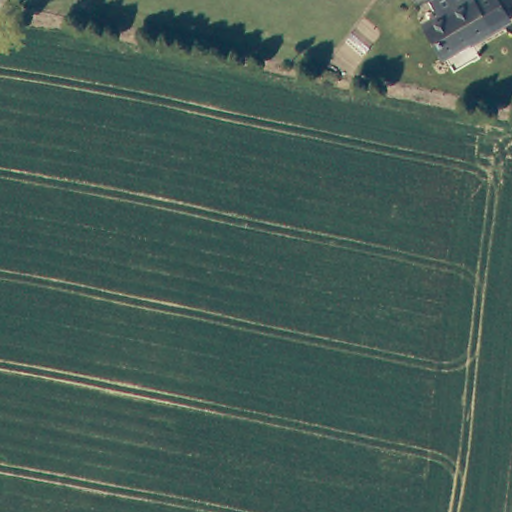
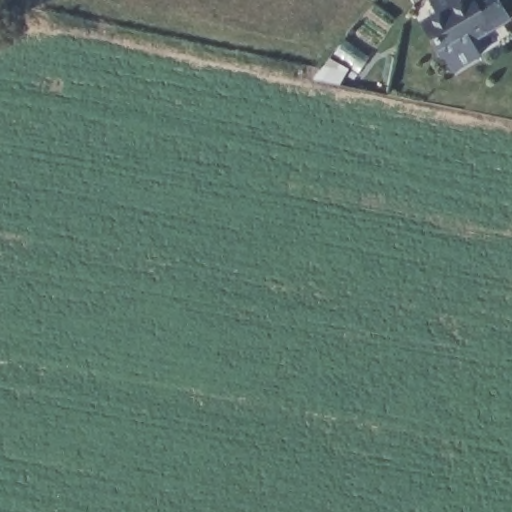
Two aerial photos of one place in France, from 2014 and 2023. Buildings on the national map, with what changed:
unchanged [(466,44),(462,39),(438,55),(421,30),(434,21),(423,4),(429,0),(448,0),(456,11),(466,5),(464,2),(466,0),(490,0),(504,20),(466,44)]

